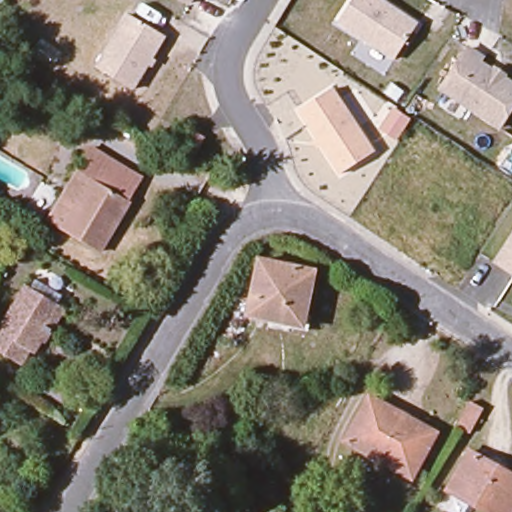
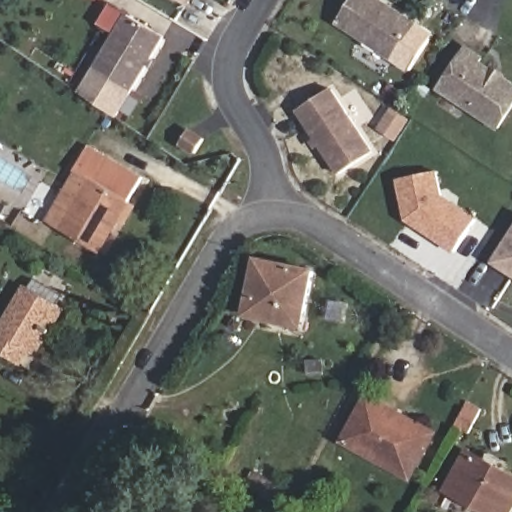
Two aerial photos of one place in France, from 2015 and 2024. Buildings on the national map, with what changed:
unchanged [(183,0),(194,0),(191,5),(183,0)]
unchanged [(338,24),(353,0),(384,0),(420,22),(393,60),(338,24)]
unchanged [(157,60),(152,68),(150,66),(115,115),(82,91),(127,14),(167,37),(155,58),(157,60)]
unchanged [(482,56),(480,60),(512,81),(512,106),(500,125),(441,87),(468,46),(482,56)]
unchanged [(340,174),(299,110),(334,87),(376,151),(340,174)]
new [(397,140),(378,128),(392,107),(411,119),(397,140)]
unchanged [(195,157),(181,146),(190,134),(204,144),(195,157)]
unchanged [(100,253),(48,225),(77,173),(74,172),(87,149),(140,179),(118,219),(112,231),(100,253)]
new [(445,195),(477,216),(453,250),(407,219),(398,179),(439,170),(445,195)]
unchanged [(512,243),(512,278),(497,268),(512,243)]
unchanged [(249,319),(259,264),(315,276),(304,329),(282,325),(267,322),(249,319)]
unchanged [(30,287),(63,307),(35,353),(30,351),(22,365),(0,352),(0,335),(30,287)]
unchanged [(359,452),(346,446),(370,401),(433,437),(410,479),(359,452)]
unchanged [(482,413),(468,438),(456,431),(468,405),(482,413)]
unchanged [(467,454),(512,480),(512,509),(511,512),(482,512),(447,492),(467,454)]

